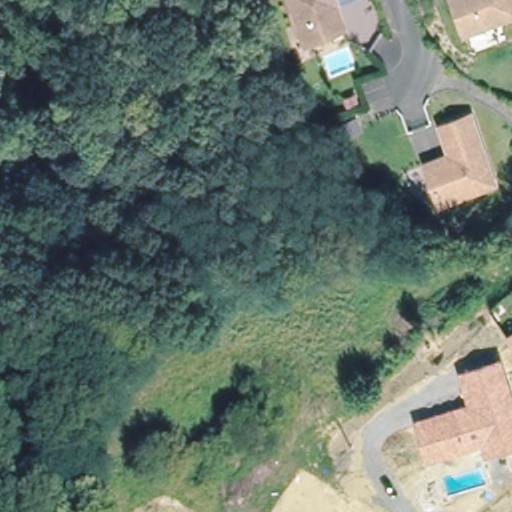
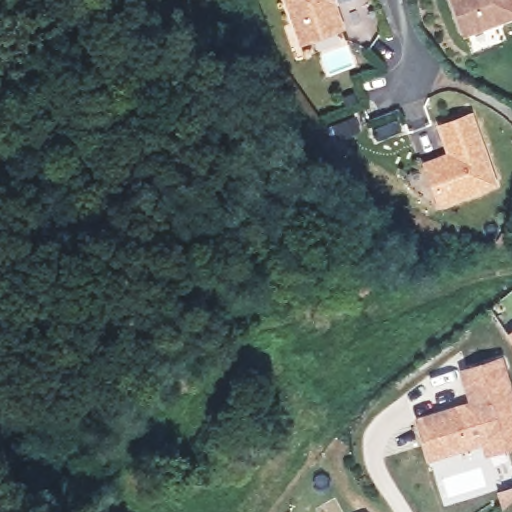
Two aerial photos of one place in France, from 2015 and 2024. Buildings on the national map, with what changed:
unchanged [(341,22),(301,36),(289,0),(334,0),(341,22)]
unchanged [(512,13),(470,28),(460,0),(512,0),(512,13)]
unchanged [(497,180),(443,198),(430,158),(455,150),(445,121),(475,111),(497,180)]
unchanged [(457,367),(503,354),(512,385),(512,445),(483,455),(479,444),(428,461),(414,416),(466,400),(457,367)]

